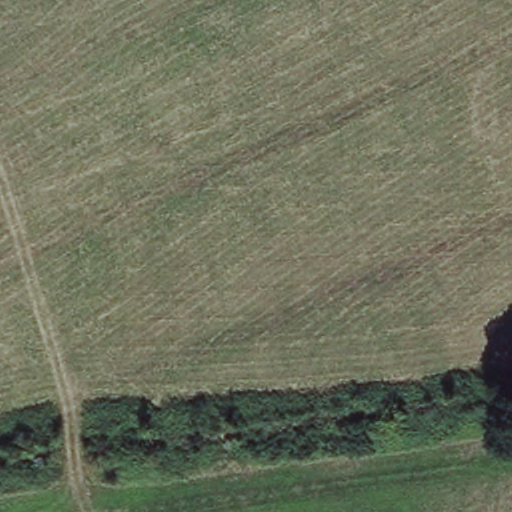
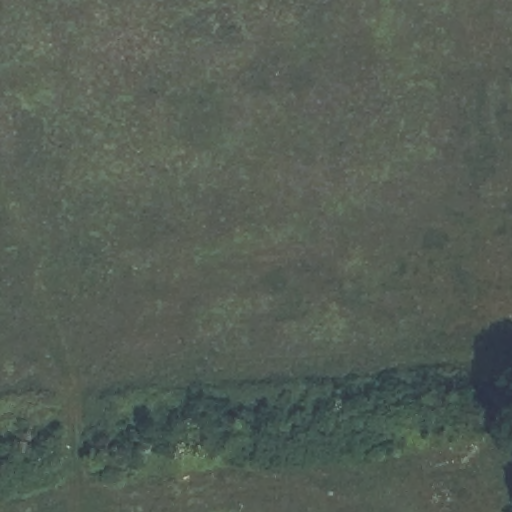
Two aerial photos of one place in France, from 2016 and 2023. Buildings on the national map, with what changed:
[]

